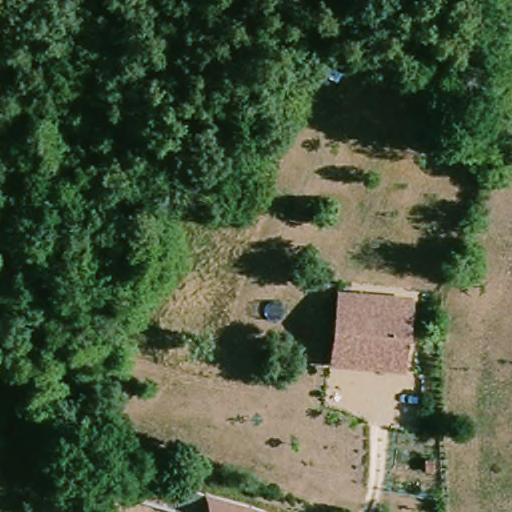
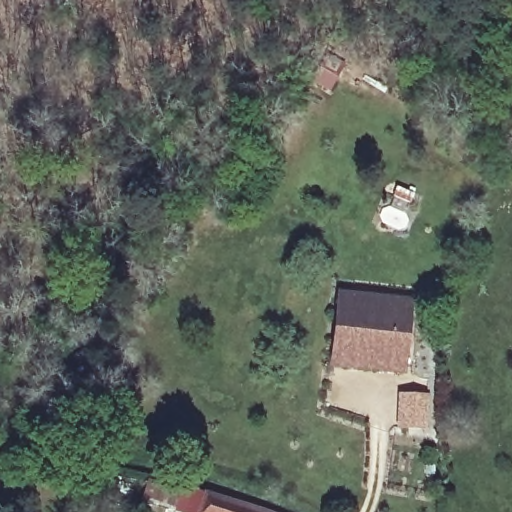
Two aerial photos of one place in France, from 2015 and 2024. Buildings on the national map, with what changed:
unchanged [(411,377),(349,372),(337,370),(344,297),(356,298),(418,305),(411,377)]
new [(398,391),(432,392),(433,427),(397,427),(398,391)]
unchanged [(182,488),(209,497),(202,512),(177,512),(142,500),(150,481),(180,492),(182,488)]
unchanged [(212,491),(269,512),(202,512),(209,497),(212,491)]

